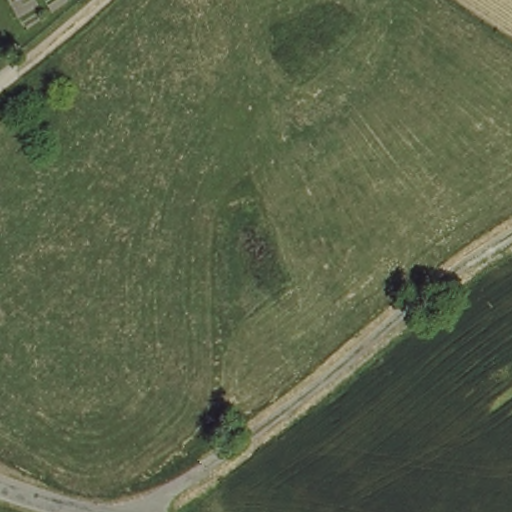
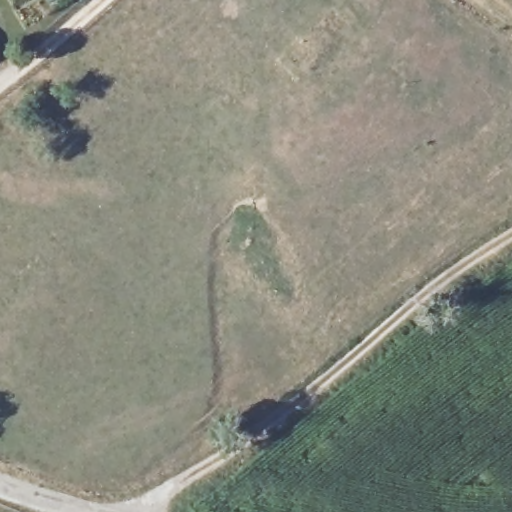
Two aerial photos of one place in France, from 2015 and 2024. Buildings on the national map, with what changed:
[]

